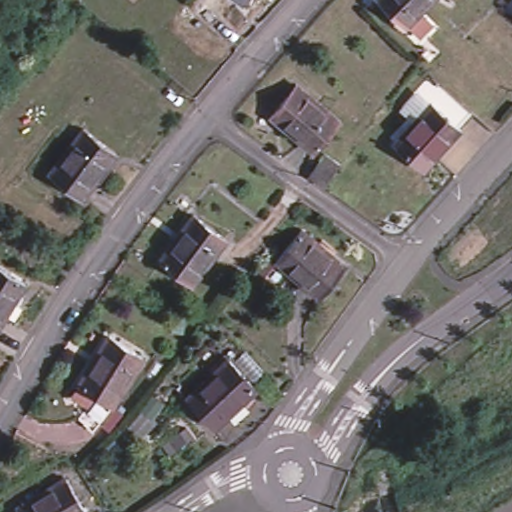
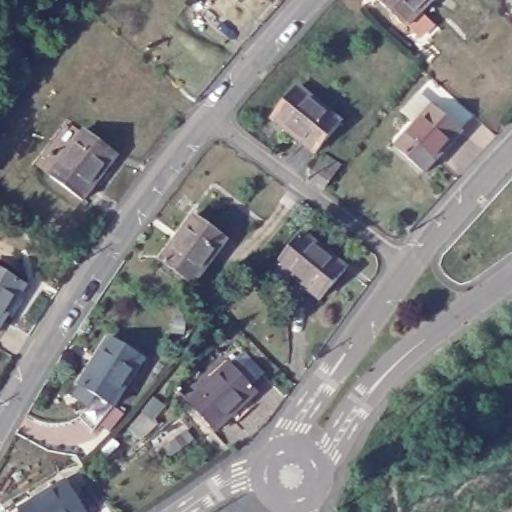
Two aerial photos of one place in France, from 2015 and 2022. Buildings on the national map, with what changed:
unchanged [(239,0),(244,0),(242,3),(239,0)]
unchanged [(379,0),(434,0),(407,28),(379,0)]
unchanged [(272,114),(298,83),(342,119),(317,150),(272,114)]
unchanged [(430,117),(413,133),(400,121),(426,93),(429,90),(472,129),(469,132),(458,144),(430,117)]
unchanged [(445,157),(442,154),(429,168),(432,171),(419,184),(390,157),(413,133),(430,117),(458,144),(445,157)]
unchanged [(85,133),(117,157),(83,202),(51,178),(85,133)]
unchanged [(324,155),(339,165),(324,186),(309,175),(324,155)]
unchanged [(160,262),(195,217),(227,242),(192,287),(160,262)]
unchanged [(279,264),(305,234),(347,270),(322,301),(279,264)]
unchanged [(25,287),(0,328),(0,270),(25,287)]
unchanged [(105,335),(139,357),(108,403),(75,381),(105,335)]
unchanged [(190,403),(231,365),(257,394),(217,431),(190,403)]
unchanged [(67,482),(85,512),(20,512),(20,511),(67,482)]

